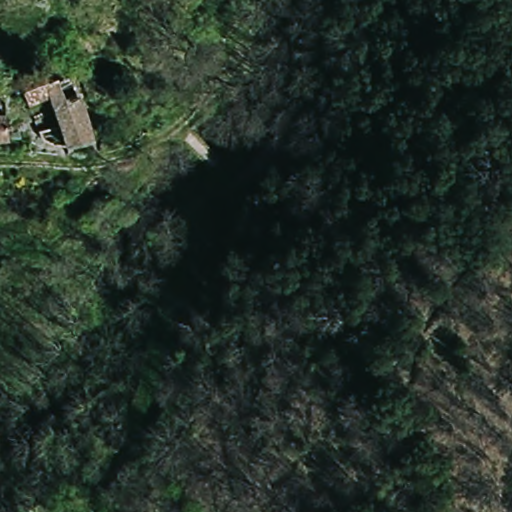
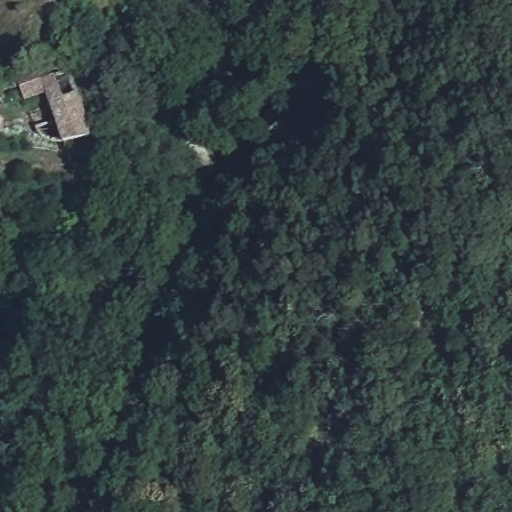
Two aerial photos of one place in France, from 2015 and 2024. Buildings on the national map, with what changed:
unchanged [(42,83),(72,74),(90,133),(60,143),(42,83)]
unchanged [(8,105),(10,131),(0,131),(0,105),(8,105)]
unchanged [(292,134),(257,184),(240,171),(258,145),(244,135),(263,111),(292,134)]

